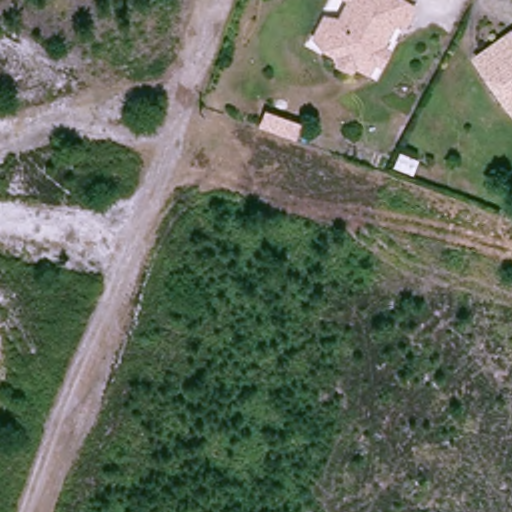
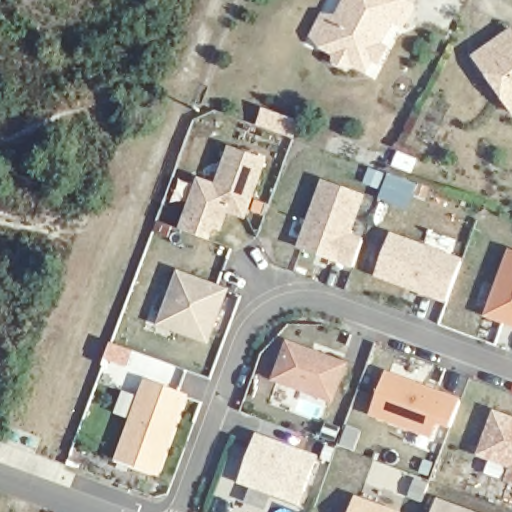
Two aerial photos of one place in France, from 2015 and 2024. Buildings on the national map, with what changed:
unchanged [(370,58),(366,66),(357,63),(344,66),(335,63),(330,50),(321,45),(311,40),(322,17),(333,23),(346,0),(401,0),(411,5),(401,25),(391,20),(377,45),(386,49),(378,63),(370,58)]
unchanged [(496,73),(482,54),(512,35),(512,98),(510,95),(496,73)]
unchanged [(272,114),(304,128),(297,143),(266,129),(272,114)]
new [(228,213),(222,231),(215,230),(212,240),(180,229),(198,180),(217,186),(230,148),(267,160),(247,219),(228,213)]
new [(323,181),(366,195),(352,235),(365,239),(353,268),(299,249),(323,181)]
new [(391,234),(462,259),(446,303),(376,277),(391,234)]
new [(509,251),(512,252),(512,327),(486,317),(509,251)]
new [(160,324),(179,272),(229,290),(209,345),(160,324)]
new [(272,380),(287,342),(349,364),(335,404),(272,380)]
new [(370,416),(387,371),(462,399),(449,429),(437,424),(431,439),(370,416)]
new [(117,461),(146,381),(189,396),(159,477),(117,461)]
new [(478,458),(495,411),(512,418),(512,486),(506,485),(510,468),(478,458)]
new [(257,434),(320,457),(302,505),(239,484),(257,434)]
new [(357,498),(397,512),(352,512),(357,498)]
new [(438,499),(475,512),(433,512),(438,499)]

